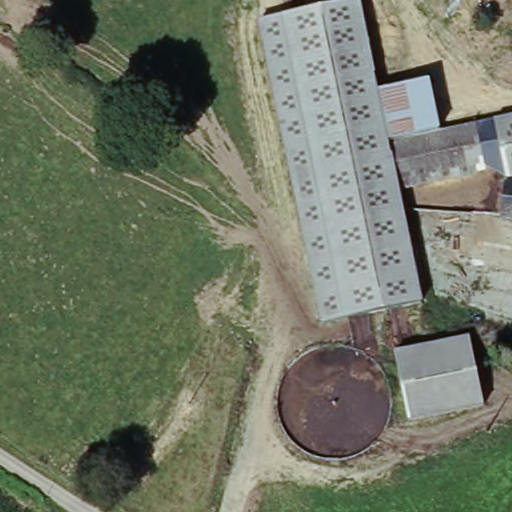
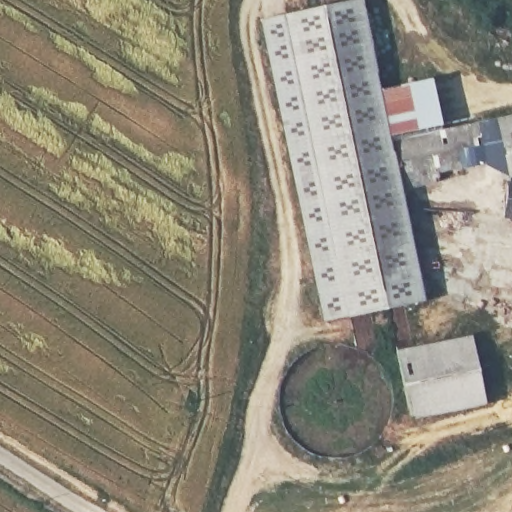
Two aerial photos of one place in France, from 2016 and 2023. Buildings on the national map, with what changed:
unchanged [(407,192),(429,303),(322,324),(258,19),(346,0),(365,0),(383,86),(433,77),(441,131),(512,112),(512,179),(507,179),(504,171),(407,192)]
unchanged [(512,179),(512,222),(505,222),(485,215),(490,177),(507,179),(512,179)]
unchanged [(482,340),(482,407),(406,408),(406,340),(482,340)]

